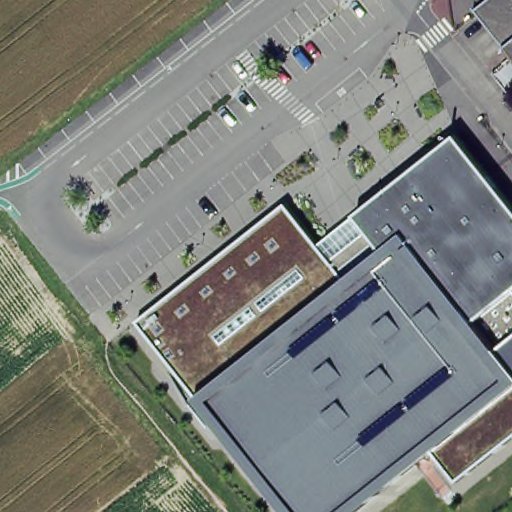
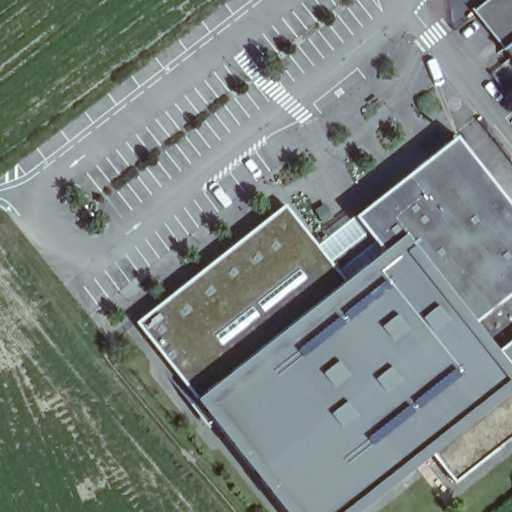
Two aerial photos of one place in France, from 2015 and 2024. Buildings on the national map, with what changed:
unchanged [(505,50),(475,12),(490,0),(512,0),(512,71),(500,54),(505,50)]
unchanged [(512,218),(512,436),(454,481),(435,453),(360,512),(277,512),(135,327),(281,210),(315,249),(454,144),(512,218)]

